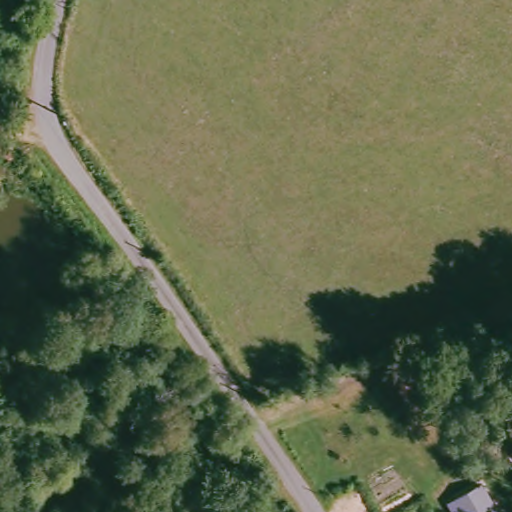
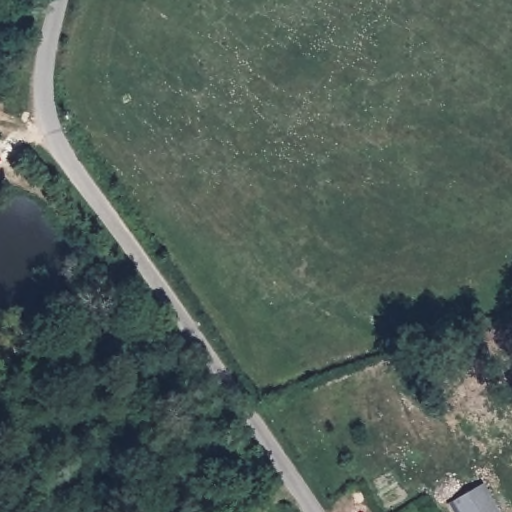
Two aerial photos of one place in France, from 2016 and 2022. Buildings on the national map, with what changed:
unchanged [(447,503),(480,484),(496,512),(452,512),(447,503)]

